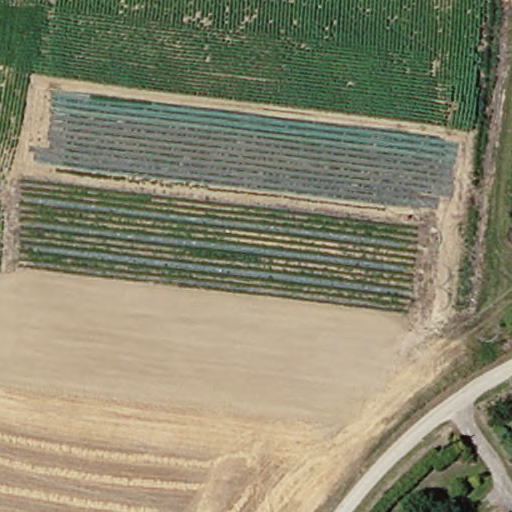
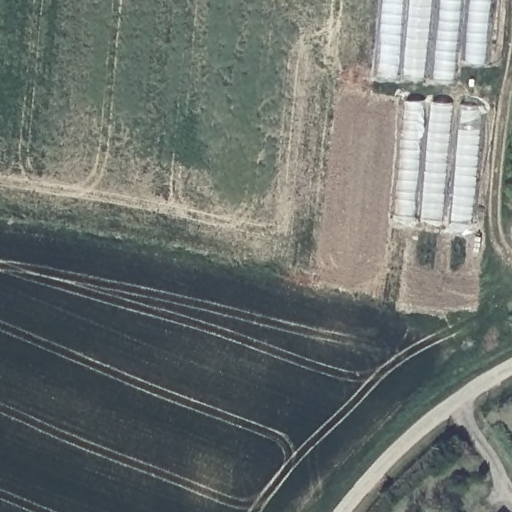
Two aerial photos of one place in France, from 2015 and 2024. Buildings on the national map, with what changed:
new [(495,0),(487,64),(460,60),(457,82),(380,74),(387,0),(495,0)]
new [(407,99),(487,105),(475,224),(396,212),(407,99)]

